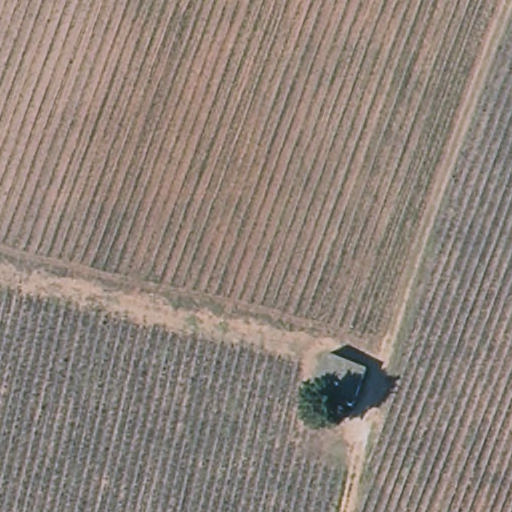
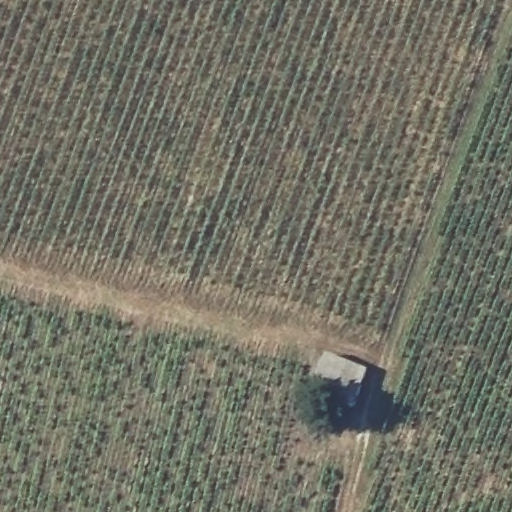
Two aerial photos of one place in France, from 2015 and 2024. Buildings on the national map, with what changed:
unchanged [(369,367),(354,412),(311,395),(327,353),(369,367)]

